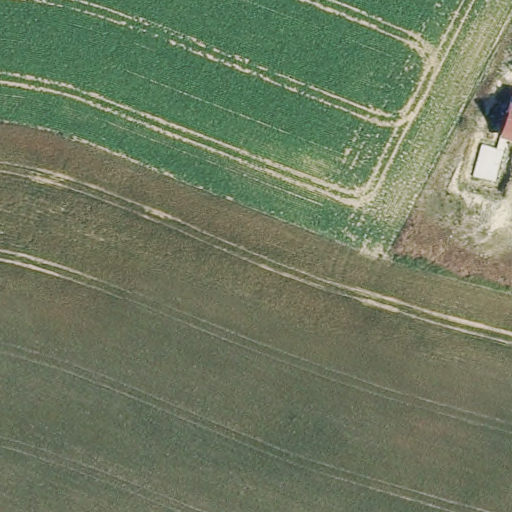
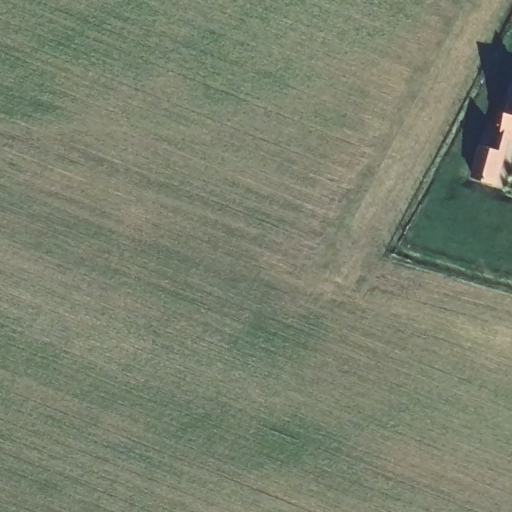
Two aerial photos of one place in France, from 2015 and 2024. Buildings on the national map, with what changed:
unchanged [(512,91),(512,138),(501,135),(512,91)]
new [(501,135),(508,137),(497,184),(470,178),(480,143),(492,147),(497,132),(502,133),(501,135)]

